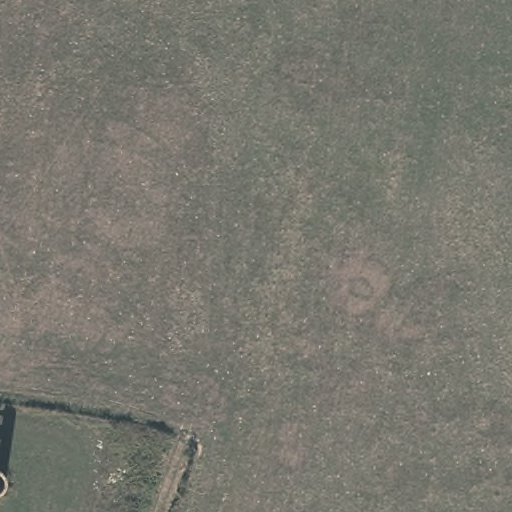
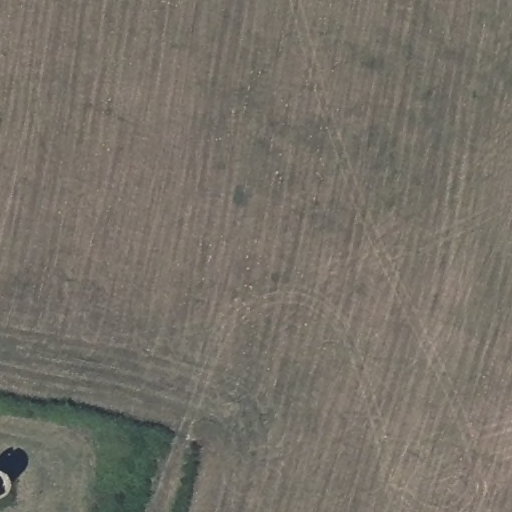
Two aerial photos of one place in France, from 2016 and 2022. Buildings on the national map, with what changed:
[]

